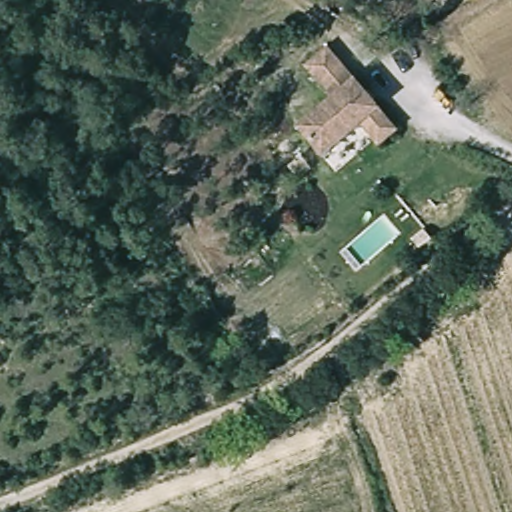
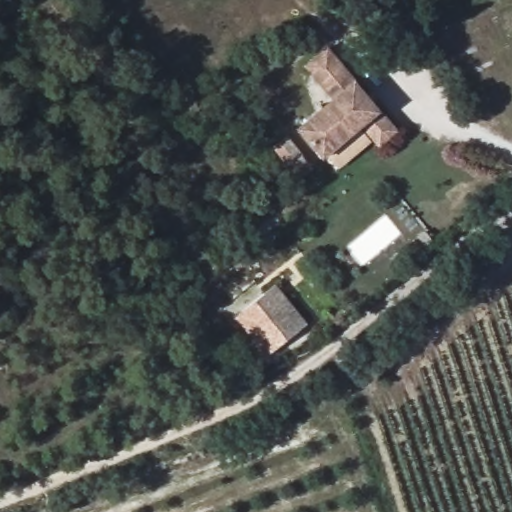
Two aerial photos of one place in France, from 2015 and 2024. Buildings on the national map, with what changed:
unchanged [(334,47),(398,137),(378,149),(363,126),(323,156),(299,125),(337,99),(312,65),(334,47)]
new [(266,355),(235,316),(277,282),(306,321),(266,355)]

